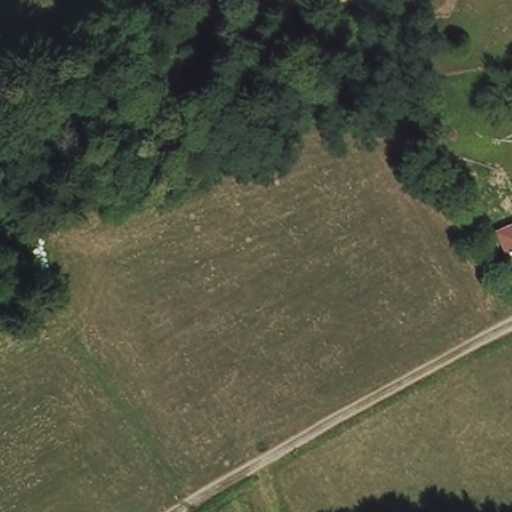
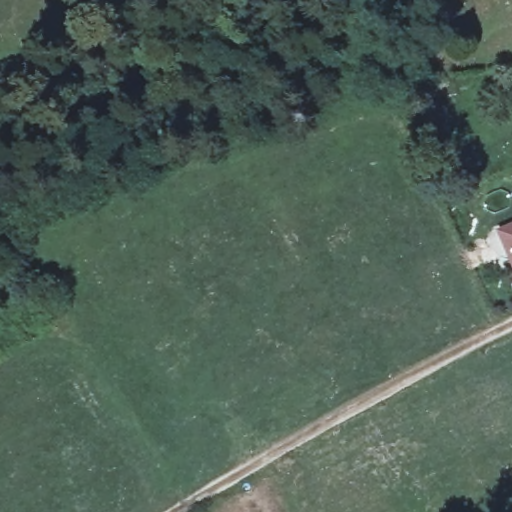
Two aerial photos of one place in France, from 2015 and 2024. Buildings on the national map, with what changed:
unchanged [(512,268),(496,230),(512,224),(512,268)]

